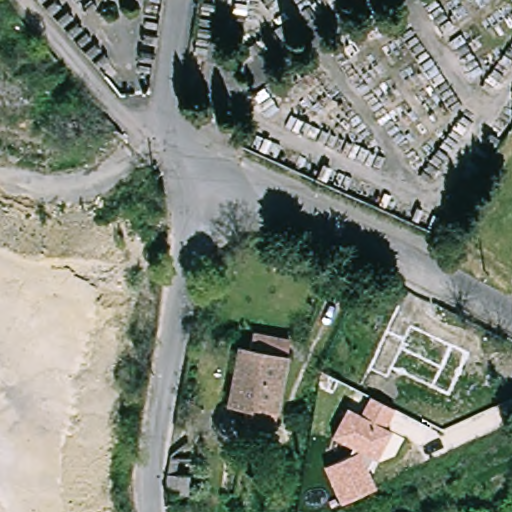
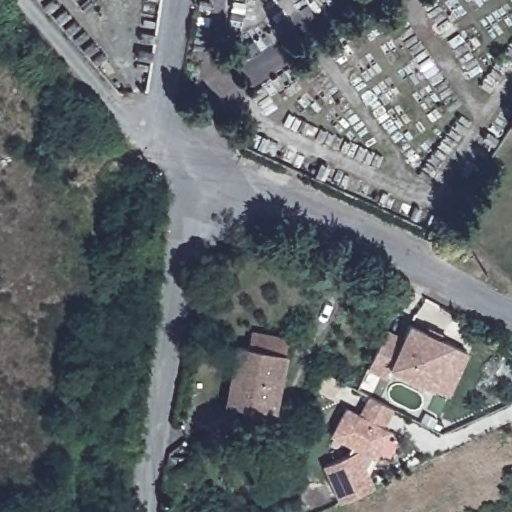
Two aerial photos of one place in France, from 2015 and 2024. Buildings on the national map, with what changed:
new [(450,396),(433,388),(390,370),(387,379),(367,370),(387,328),(404,336),(409,323),(454,343),(469,351),(450,396)]
unchanged [(246,412),(250,400),(229,393),(247,339),(258,342),(264,325),(298,336),(275,405),(270,420),(246,412)]
unchanged [(393,409),(385,426),(390,429),(377,460),(371,459),(366,469),(375,486),(340,502),(324,466),(348,455),(350,447),(330,437),(345,406),(358,413),(370,397),(393,409)]
unchanged [(193,496),(168,493),(166,473),(166,471),(195,475),(193,496)]
unchanged [(186,512),(170,512),(169,500),(185,501),(186,512)]

